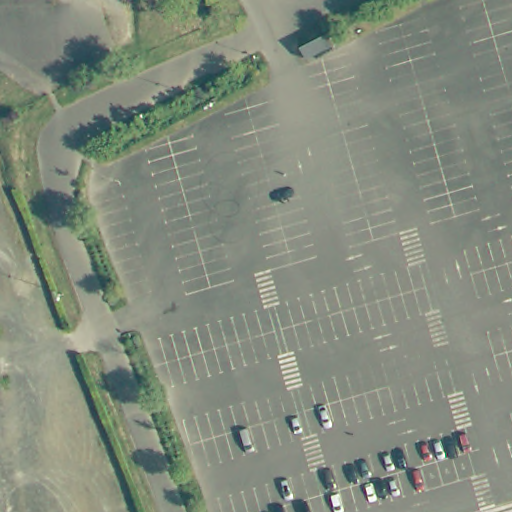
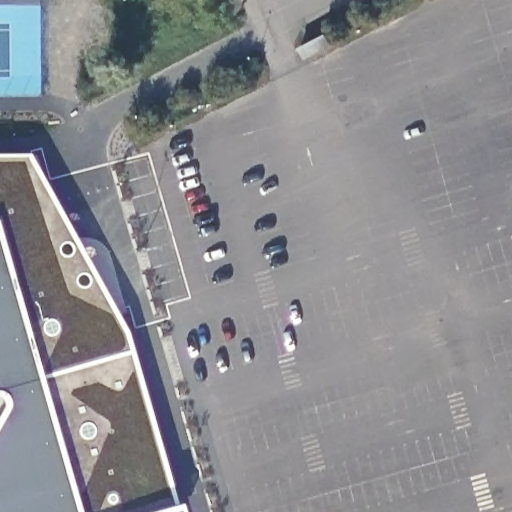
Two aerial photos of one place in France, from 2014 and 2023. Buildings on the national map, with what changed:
new [(329,34),(335,45),(307,60),(301,49),(329,34)]
new [(121,332),(126,350),(171,506),(173,512),(0,512),(0,155),(24,155),(121,332)]

